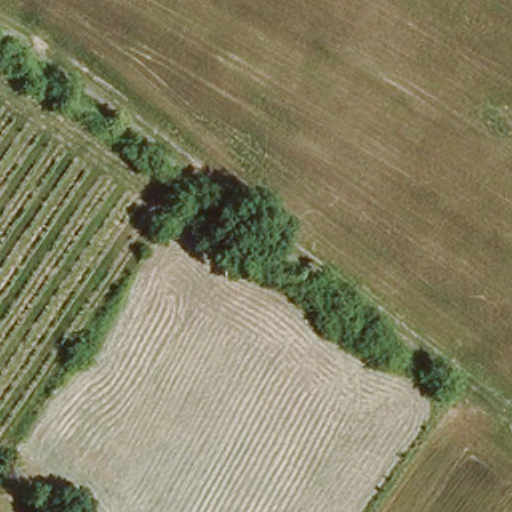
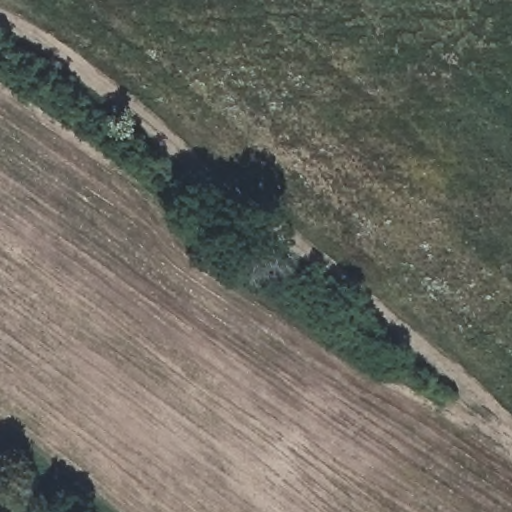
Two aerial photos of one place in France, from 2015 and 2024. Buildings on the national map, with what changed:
[]

